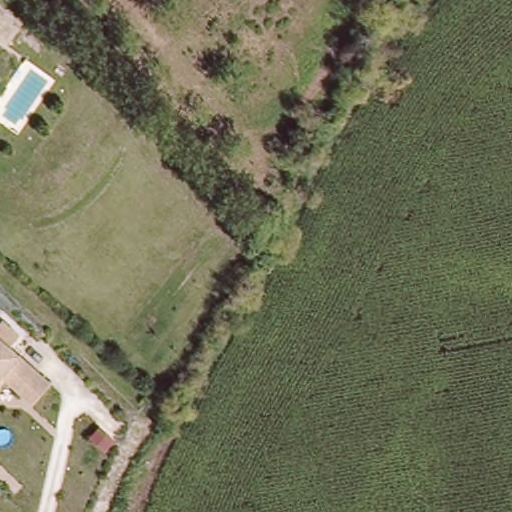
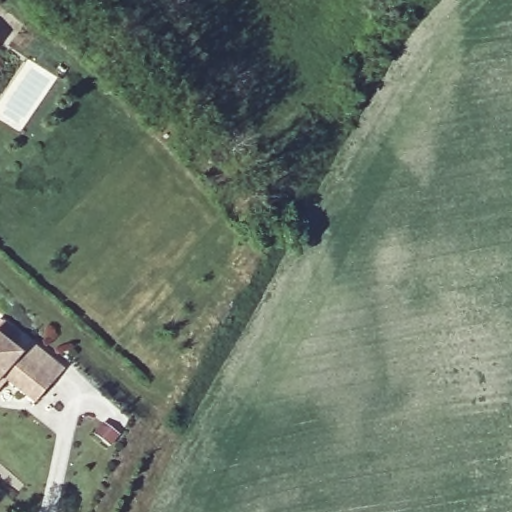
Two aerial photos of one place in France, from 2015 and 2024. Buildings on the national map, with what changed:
unchanged [(21,335),(12,347),(22,356),(53,383),(35,404),(5,377),(0,382),(0,325),(3,322),(21,335)]

